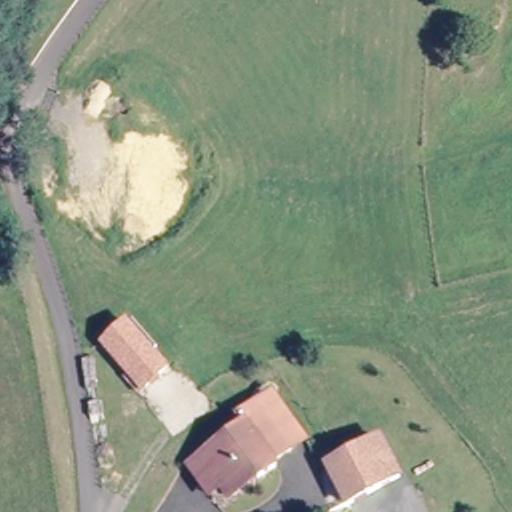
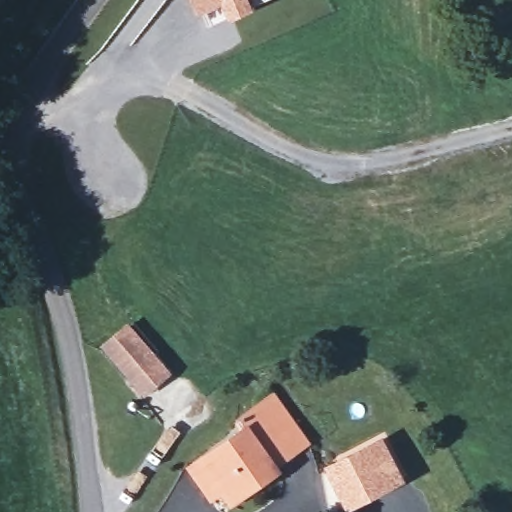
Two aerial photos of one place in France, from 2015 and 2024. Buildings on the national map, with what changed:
new [(254,10),(229,21),(222,4),(199,15),(192,0),(249,0),(254,10)]
unchanged [(169,367),(148,387),(106,342),(128,322),(169,367)]
unchanged [(185,477),(198,468),(244,435),(234,421),(265,399),(277,414),(302,447),(288,456),(267,470),(271,476),(254,487),(251,483),(228,502),(219,492),(204,502),(185,477)]
unchanged [(382,440),(402,477),(349,506),(329,468),(382,440)]

